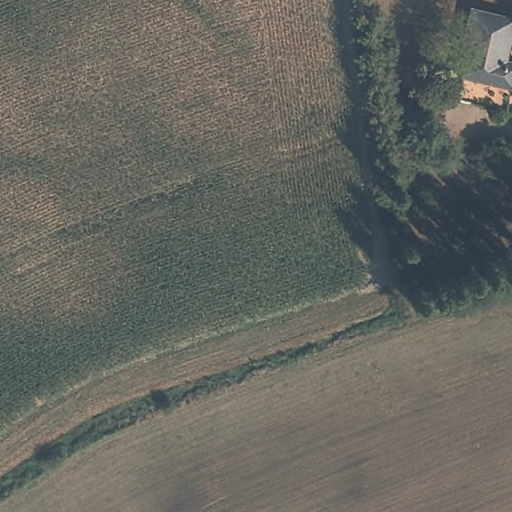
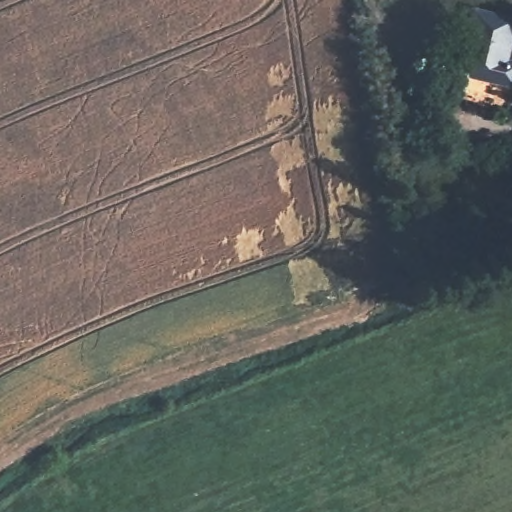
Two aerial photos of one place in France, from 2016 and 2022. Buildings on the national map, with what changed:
unchanged [(445,86),(453,57),(462,60),(479,0),(483,0),(512,8),(512,38),(508,52),(512,52),(512,74),(502,71),(495,101),(474,94),(445,86)]

